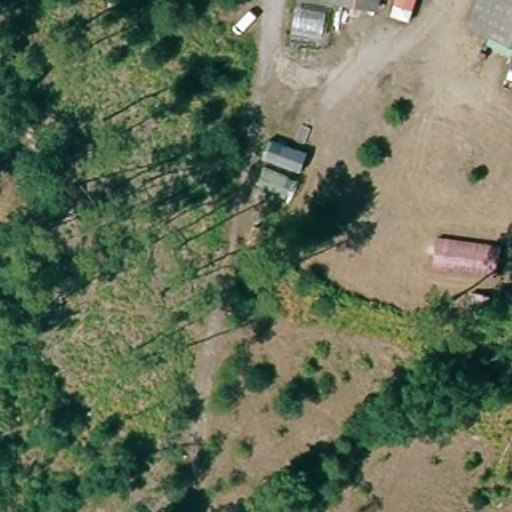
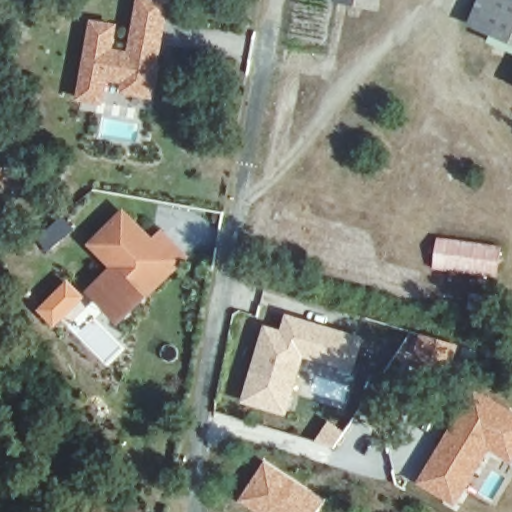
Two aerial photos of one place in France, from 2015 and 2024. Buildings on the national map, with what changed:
new [(114,20),(109,44),(128,48),(131,37),(137,6),(138,0),(166,0),(164,12),(158,42),(148,90),(121,85),(123,75),(103,70),(98,95),(76,90),(92,15),(114,20)]
unchanged [(374,9),(333,0),(375,0),(374,9)]
unchanged [(481,0),(512,0),(512,38),(473,21),(481,0)]
new [(127,209),(156,238),(151,244),(168,261),(133,295),(119,296),(102,279),(117,263),(95,240),(127,209)]
new [(102,279),(119,296),(133,295),(168,261),(151,244),(156,238),(167,227),(190,251),(122,318),(93,287),(102,279)]
unchanged [(497,271),(437,263),(441,235),(501,243),(497,271)]
unchanged [(500,311),(469,305),(472,290),(503,296),(500,311)]
new [(242,403),(265,326),(281,330),(286,315),(365,338),(355,371),(304,357),(287,416),(242,403)]
new [(410,329),(458,345),(439,387),(419,379),(418,383),(386,371),(410,329)]
new [(477,387),(512,408),(512,462),(511,465),(490,451),(455,507),(415,482),(442,438),(477,387)]
new [(324,499),(316,512),(254,512),(238,501),(264,460),(324,499)]
unchanged [(126,512),(138,505),(143,512),(126,512)]

